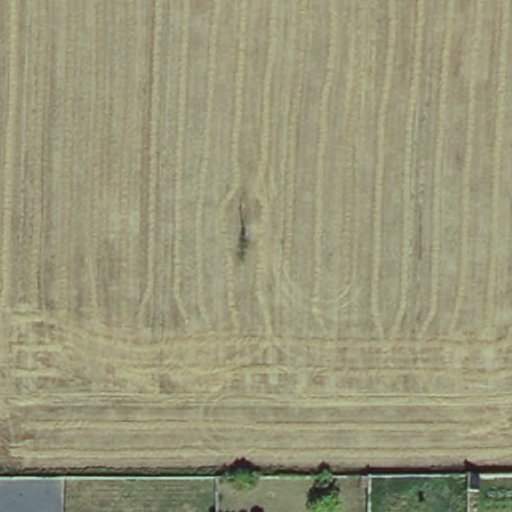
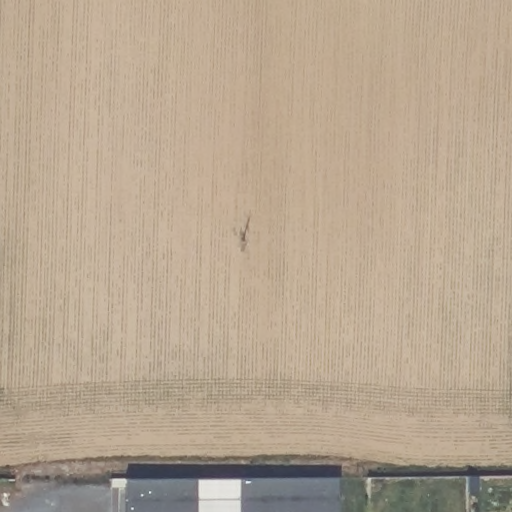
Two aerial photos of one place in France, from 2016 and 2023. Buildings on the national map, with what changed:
new [(340,468),(338,511),(303,509),(303,512),(122,512),(120,465),(340,468)]
unchanged [(476,492),(461,492),(460,474),(475,473),(476,492)]
demolished [(373,476),(373,495),(362,495),(362,476),(373,476)]

